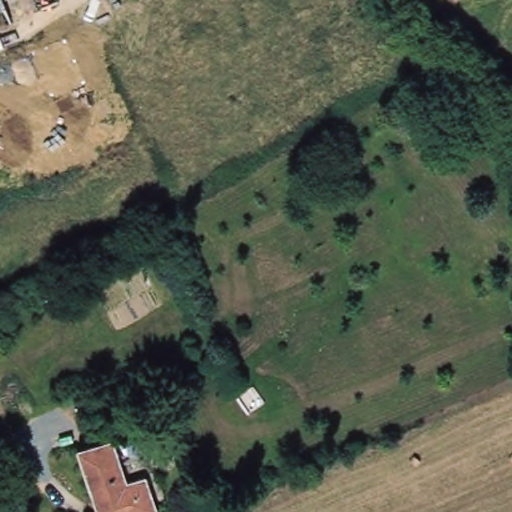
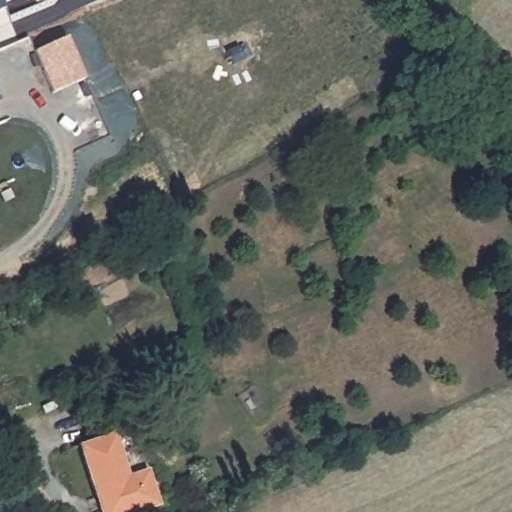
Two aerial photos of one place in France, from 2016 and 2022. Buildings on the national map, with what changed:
new [(4,8),(0,10),(0,0),(9,0),(2,3),(4,8)]
new [(60,24),(84,79),(52,92),(28,37),(60,24)]
unchanged [(122,478),(139,473),(150,506),(133,512),(97,512),(73,448),(107,435),(122,478)]

